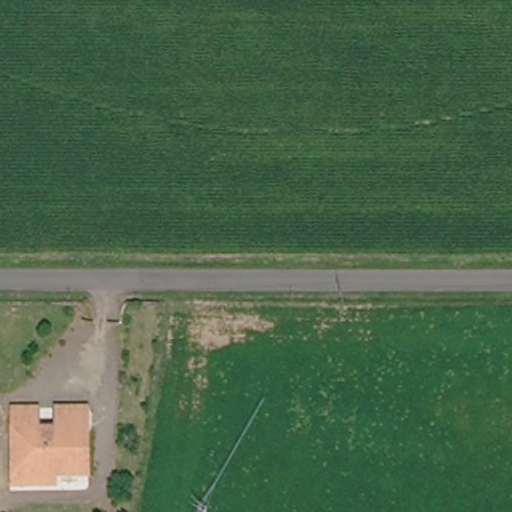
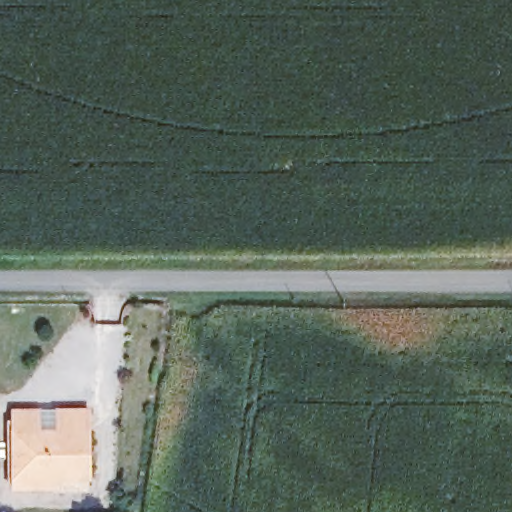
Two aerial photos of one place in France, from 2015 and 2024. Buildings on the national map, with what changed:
unchanged [(40,486),(15,486),(15,411),(40,411),(40,431),(63,431),(63,410),(88,410),(88,475),(80,475),(54,475),(54,486),(40,486)]

